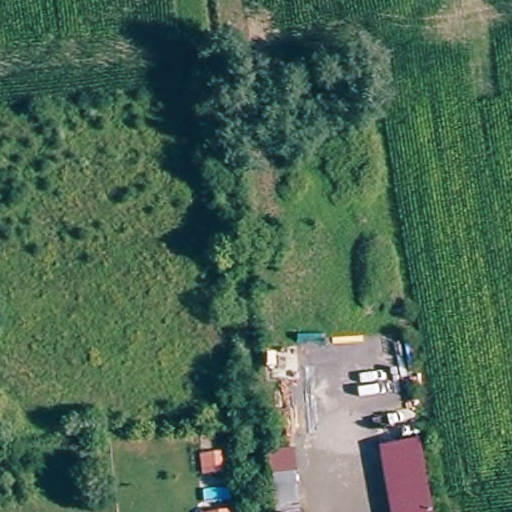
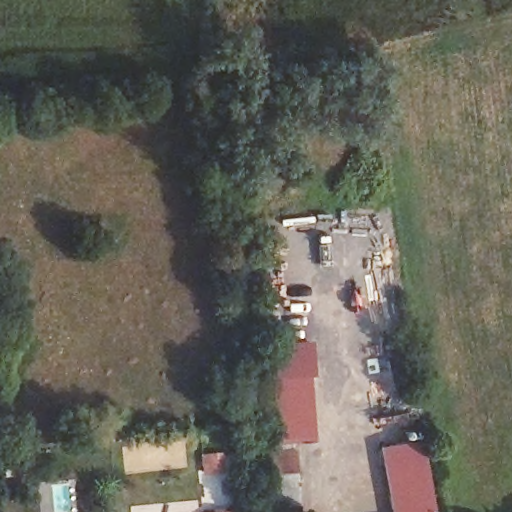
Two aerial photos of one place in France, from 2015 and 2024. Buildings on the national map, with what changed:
new [(316,375),(310,375),(315,441),(274,443),(267,344),(313,339),(316,375)]
unchanged [(384,445),(421,439),(434,512),(394,512),(384,445)]
unchanged [(219,458),(222,473),(209,475),(207,460),(219,458)]
unchanged [(272,470),(302,463),(306,512),(277,512),(272,470)]

